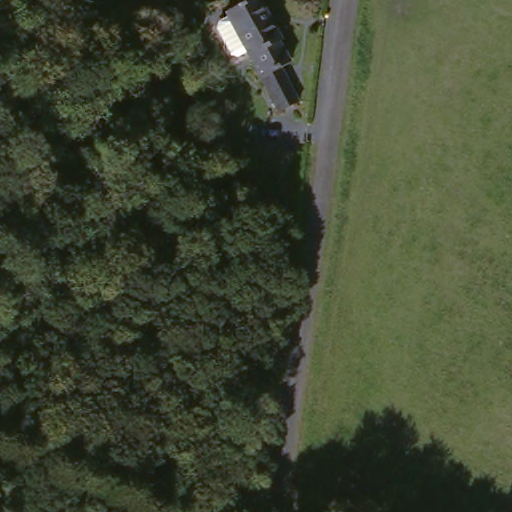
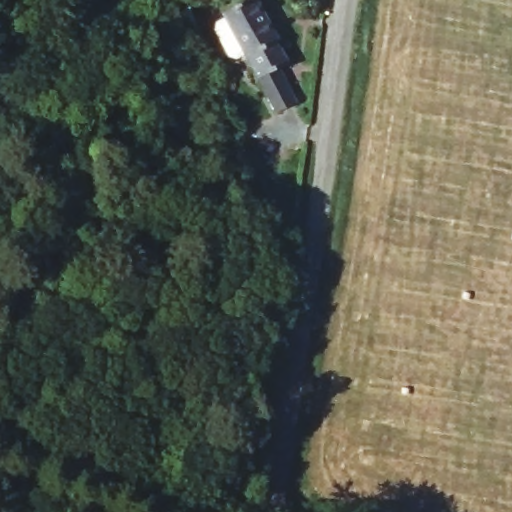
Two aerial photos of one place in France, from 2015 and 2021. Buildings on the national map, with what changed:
unchanged [(256,1),(281,46),(279,47),(289,68),(280,73),(298,107),(278,117),(261,84),(247,57),(237,63),(230,61),(216,35),(218,28),(228,22),(224,17),(256,1)]

